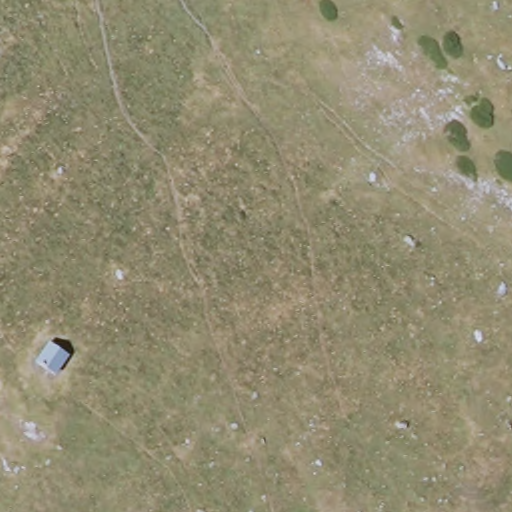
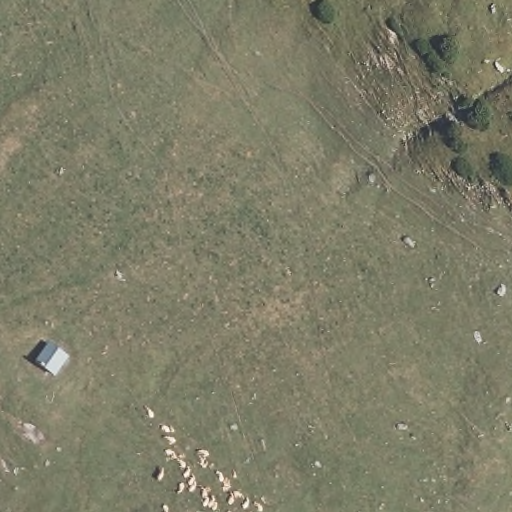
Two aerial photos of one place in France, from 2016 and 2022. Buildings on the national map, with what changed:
unchanged [(75,356),(52,385),(26,360),(45,339),(75,356)]

